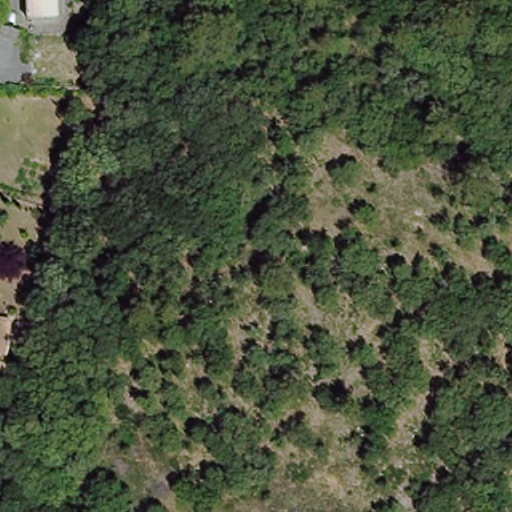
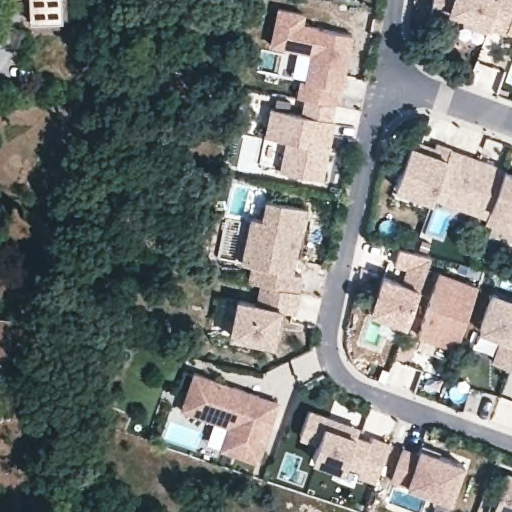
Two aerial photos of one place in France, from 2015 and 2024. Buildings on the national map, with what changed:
unchanged [(64,15),(32,17),(30,0),(63,0),(64,15)]
new [(434,0),(497,0),(490,21),(487,30),(462,21),(464,15),(450,10),(449,14),(432,11),(434,0)]
new [(490,21),(497,0),(512,0),(512,29),(490,21)]
new [(279,7),(304,13),(302,23),(353,34),(341,88),(339,88),(335,104),(306,97),(298,96),(302,79),(307,80),(313,52),(271,43),(279,7)]
new [(303,113),(306,97),(335,104),(332,119),(334,119),(331,134),(330,140),(322,178),(281,169),(287,139),(266,134),(272,106),(303,113)]
new [(414,133),(436,142),(437,137),(452,142),(450,148),(435,190),(434,193),(397,179),(414,133)]
new [(450,148),(504,168),(504,169),(489,210),(435,190),(450,148)]
new [(504,169),(512,172),(512,223),(487,214),(489,210),(504,169)]
new [(301,273),(298,289),(261,282),(249,279),(253,263),(242,261),(252,215),(264,218),(268,198),(305,206),(295,255),(292,271),(301,273)]
new [(384,275),(404,280),(408,265),(394,262),(399,245),(430,253),(405,322),(374,313),(384,275)]
new [(440,271),(477,284),(455,345),(418,332),(440,271)]
new [(237,297),(257,302),(261,282),(298,289),(293,310),(280,308),(272,342),(230,333),(237,297)]
new [(494,295),(512,302),(512,358),(509,368),(494,362),(502,338),(481,331),(494,295)]
unchanged [(0,322),(12,323),(9,353),(7,372),(0,371),(0,322)]
new [(185,372),(194,375),(195,372),(279,403),(258,461),(221,447),(230,425),(182,408),(190,388),(180,385),(185,372)]
new [(312,455),(317,439),(299,432),(308,408),(334,418),(344,421),(341,430),(368,440),(370,435),(389,441),(375,478),(357,471),(343,466),(312,455)]
new [(403,446),(418,452),(419,447),(462,463),(449,500),(391,479),(403,446)]
new [(493,512),(507,472),(512,474),(512,512),(493,512)]

